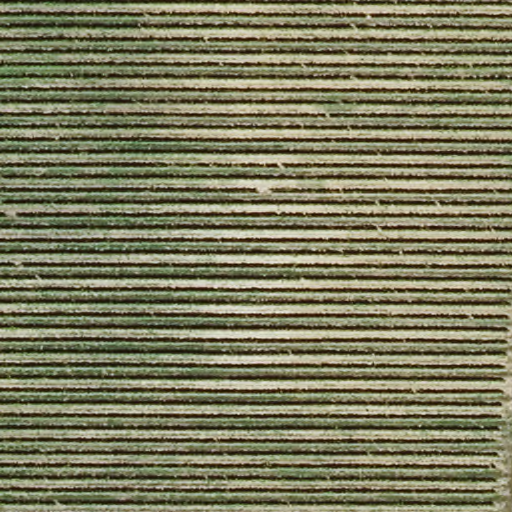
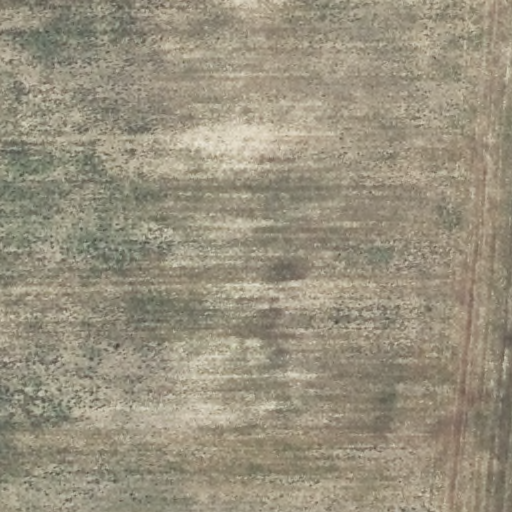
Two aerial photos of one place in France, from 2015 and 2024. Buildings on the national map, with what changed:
[]

